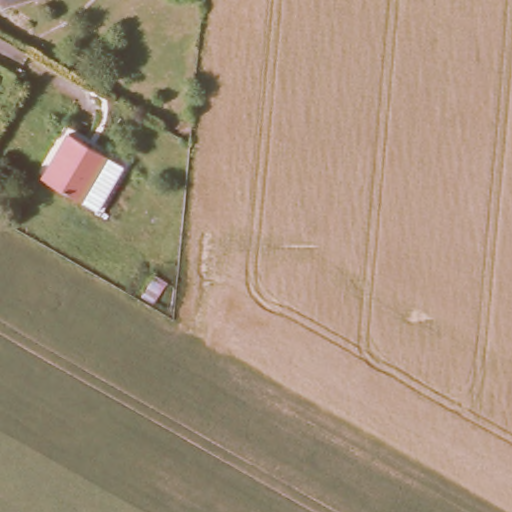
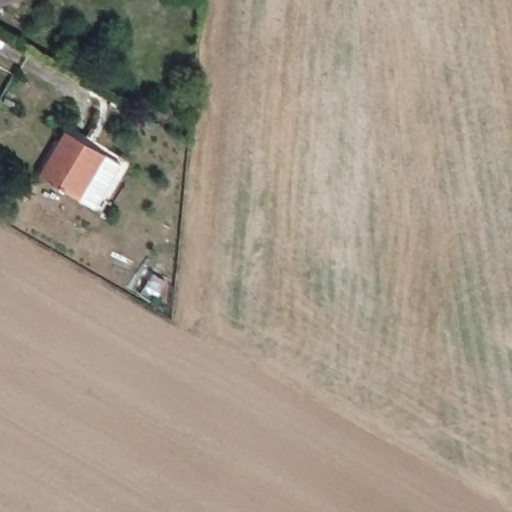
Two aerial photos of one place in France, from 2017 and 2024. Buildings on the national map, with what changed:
unchanged [(0,1),(0,0),(3,0),(0,1)]
unchanged [(106,154),(79,200),(43,178),(70,134),(106,154)]

